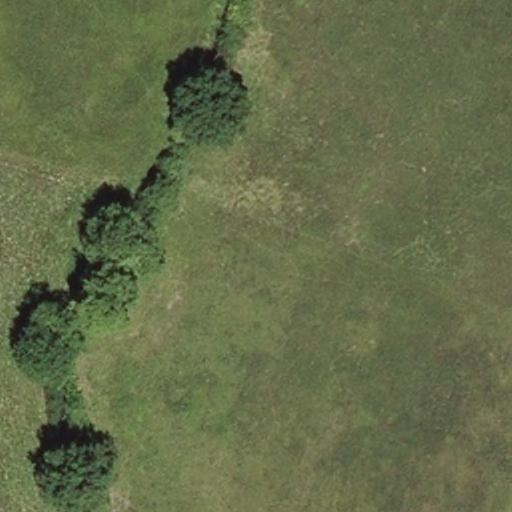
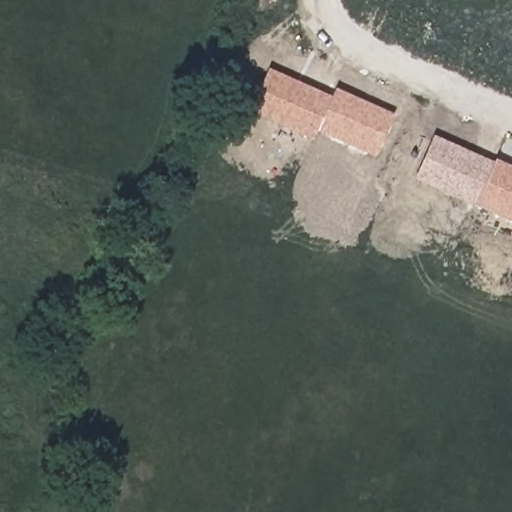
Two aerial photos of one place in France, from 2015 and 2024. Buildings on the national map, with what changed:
new [(392,113),(375,156),(316,131),(312,140),(251,113),(269,67),(332,97),(335,88),(392,113)]
new [(512,167),(512,222),(473,205),(415,178),(434,135),(494,163),(495,160),(512,167)]

